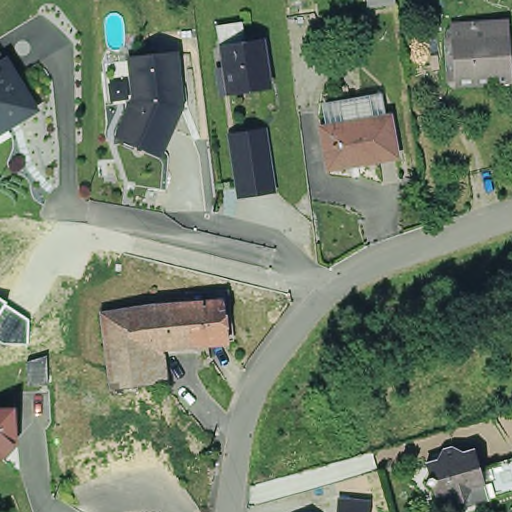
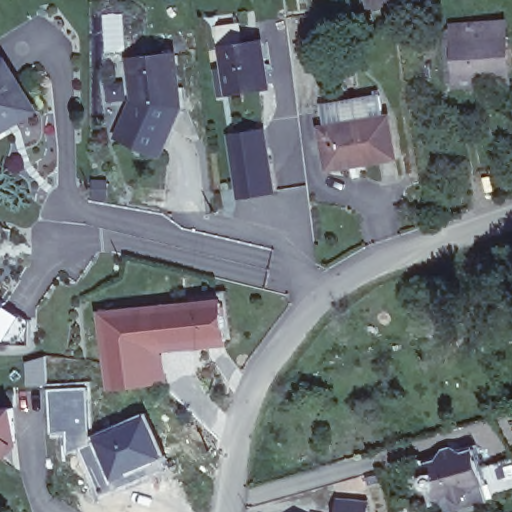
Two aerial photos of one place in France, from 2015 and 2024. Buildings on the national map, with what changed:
unchanged [(371,8),(370,0),(396,0),(397,5),(395,5),(371,8)]
unchanged [(491,90),(491,83),(457,84),(456,44),(456,34),(503,32),(503,43),(504,90),(491,90)]
unchanged [(271,41),(278,85),(239,90),(232,46),(271,41)]
unchanged [(180,98),(173,112),(159,144),(118,127),(133,90),(119,91),(115,53),(129,52),(165,47),(174,46),(180,98)]
unchanged [(11,114),(0,121),(0,58),(8,53),(32,94),(8,109),(11,114)]
unchanged [(392,164),(348,171),(324,175),(317,133),(324,132),(319,109),(338,105),(375,99),(379,121),(386,120),(392,164)]
unchanged [(266,130),(274,174),(245,179),(238,136),(266,130)]
unchanged [(232,346),(172,352),(166,314),(199,311),(197,298),(221,295),(222,308),(227,308),(232,346)]
unchanged [(29,346),(3,345),(0,343),(0,298),(7,303),(6,305),(29,320),(29,346)]
unchanged [(120,392),(110,320),(166,314),(172,352),(153,355),(159,388),(120,392)]
new [(47,357),(48,384),(28,385),(27,362),(47,357)]
new [(89,384),(92,432),(147,409),(173,464),(98,497),(78,450),(66,454),(64,434),(49,435),(47,387),(89,384)]
demolished [(154,448),(113,471),(110,465),(94,428),(152,401),(168,435),(176,432),(195,464),(174,479),(154,448)]
unchanged [(15,403),(18,441),(10,455),(0,456),(0,405),(15,403)]
demolished [(110,465),(74,482),(52,434),(52,430),(80,416),(87,431),(94,428),(110,465)]
unchanged [(437,486),(431,483),(435,477),(431,463),(447,459),(446,454),(448,450),(456,448),(460,450),(461,455),(479,450),(484,469),(512,461),(512,494),(492,499),(450,512),(445,512),(441,499),(437,486)]
unchanged [(340,512),(341,506),(371,509),(370,512),(340,512)]

